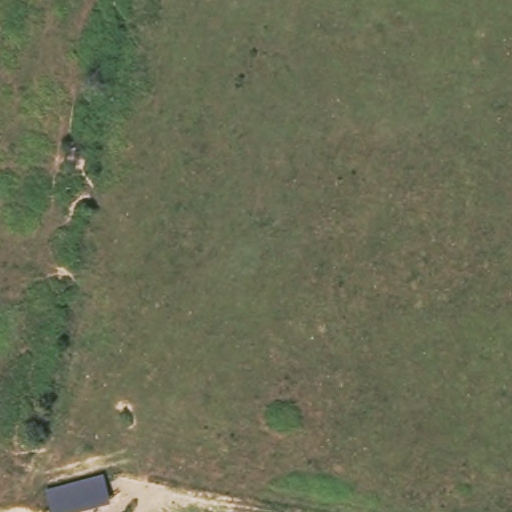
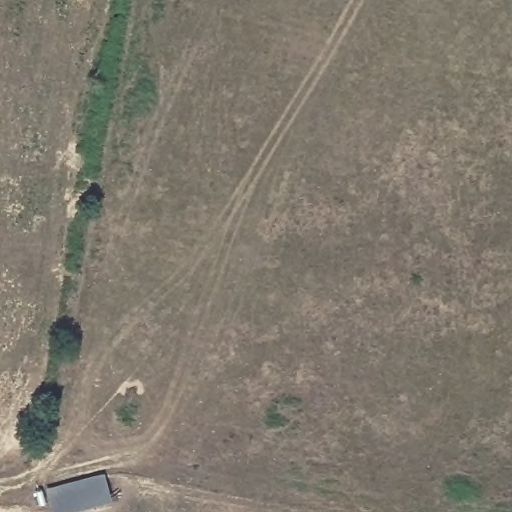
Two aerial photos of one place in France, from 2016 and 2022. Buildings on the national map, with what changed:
unchanged [(105,473),(111,501),(77,512),(50,512),(44,490),(105,473)]

